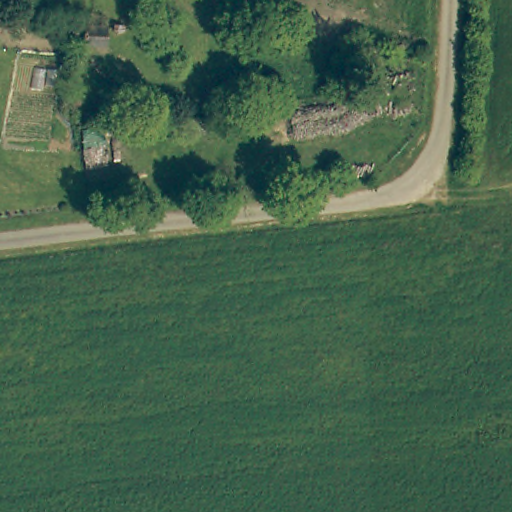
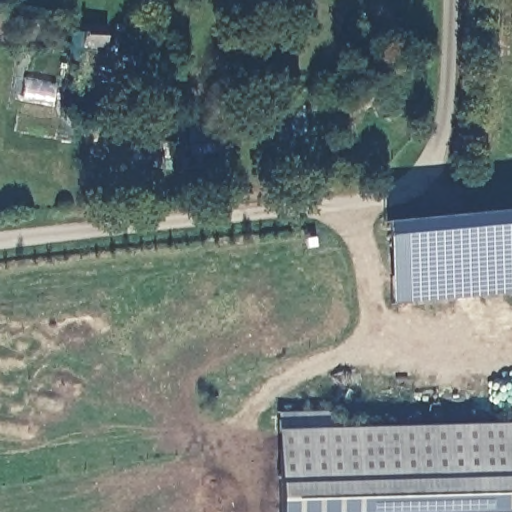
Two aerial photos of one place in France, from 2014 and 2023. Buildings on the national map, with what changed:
unchanged [(80,45),(80,40),(69,40),(69,25),(104,26),(104,31),(104,45),(80,45)]
new [(391,305),(383,222),(512,210),(512,293),(391,305)]
new [(281,512),(279,430),(279,413),(334,411),(335,428),(512,423),(512,512),(281,512)]

